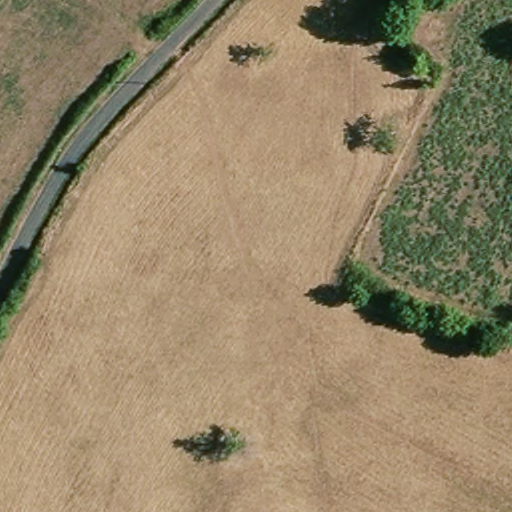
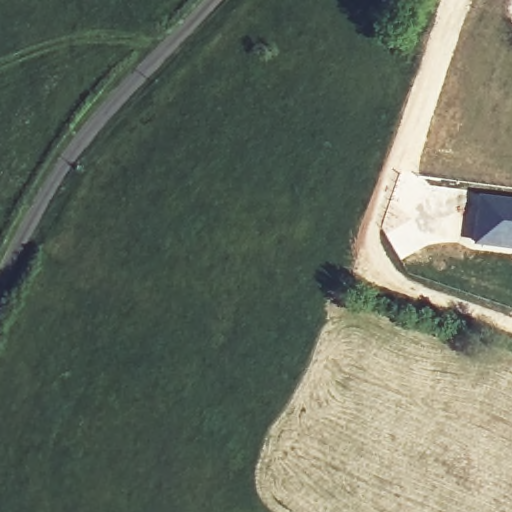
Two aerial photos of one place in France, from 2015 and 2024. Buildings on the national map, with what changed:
unchanged [(402,0),(392,16),(379,7),(383,0),(402,0)]
new [(479,193),(512,198),(512,251),(470,245),(479,193)]

